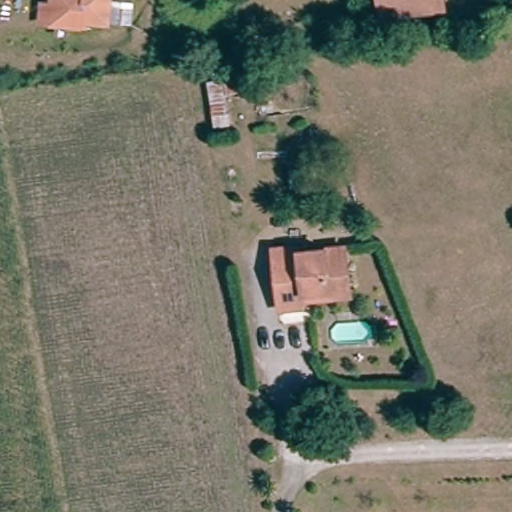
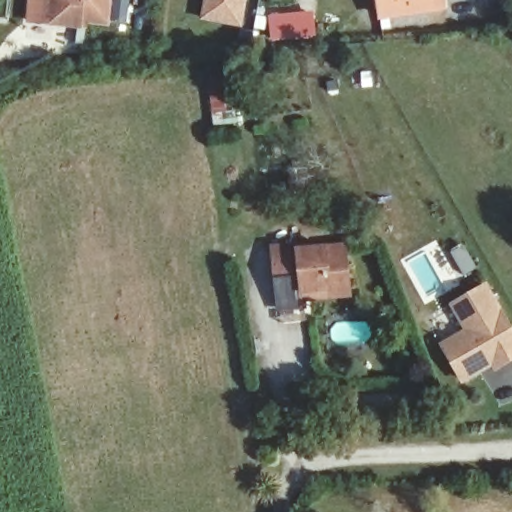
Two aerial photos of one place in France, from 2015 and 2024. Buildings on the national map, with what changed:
unchanged [(99,19),(78,17),(78,22),(43,19),(32,17),(34,0),(101,0),(99,19)]
unchanged [(107,0),(125,0),(124,3),(106,1),(107,0)]
new [(242,27),(200,19),(204,0),(247,0),(242,27)]
unchanged [(444,9),(382,17),(380,0),(443,0),(444,9)]
unchanged [(106,6),(124,8),(122,22),(104,20),(106,6)]
unchanged [(281,312),(281,307),(274,250),(300,247),(300,252),(346,247),(350,287),(351,295),(306,301),(307,303),(307,308),(281,312)]
new [(512,363),(496,372),(493,367),(463,385),(439,343),(464,330),(449,305),(489,282),(512,325),(512,363)]

